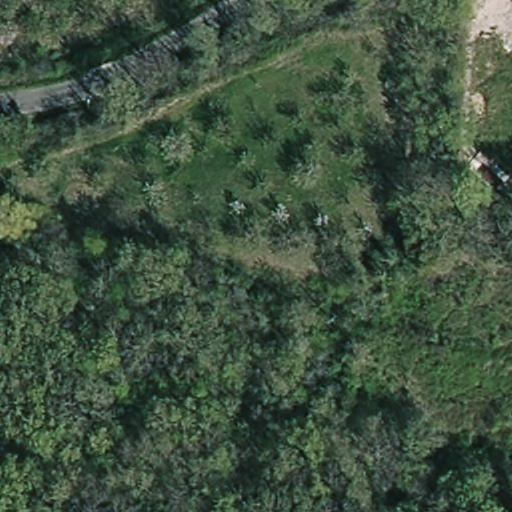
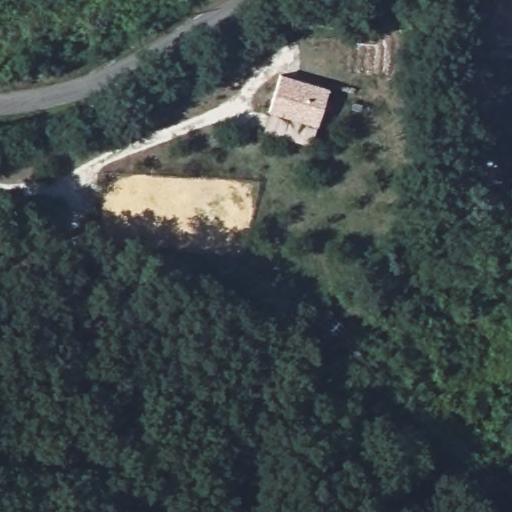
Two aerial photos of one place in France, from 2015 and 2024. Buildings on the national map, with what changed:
new [(331,89),(318,127),(269,112),(281,74),(331,89)]

